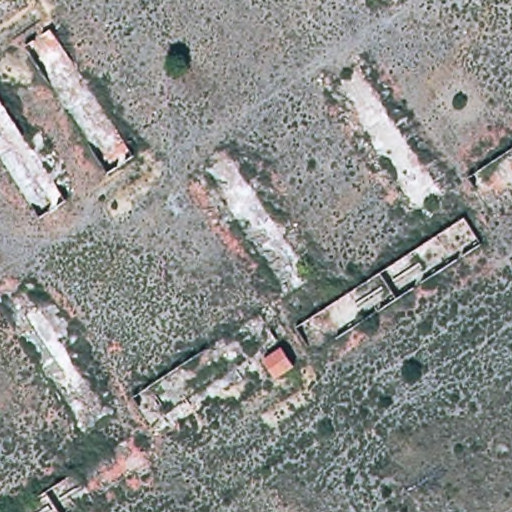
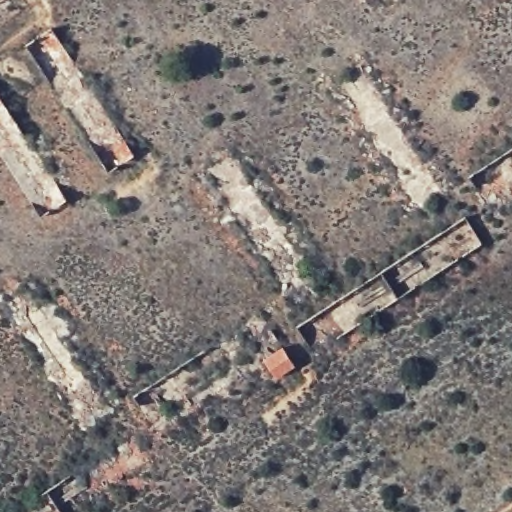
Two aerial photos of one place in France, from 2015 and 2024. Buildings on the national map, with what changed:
unchanged [(280,337),(291,357),(273,369),(261,350),(280,337)]

